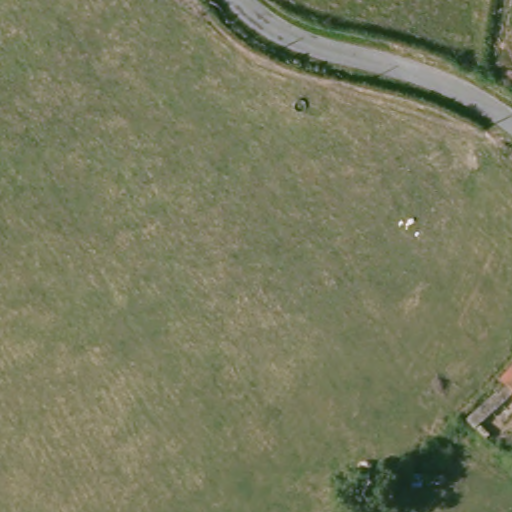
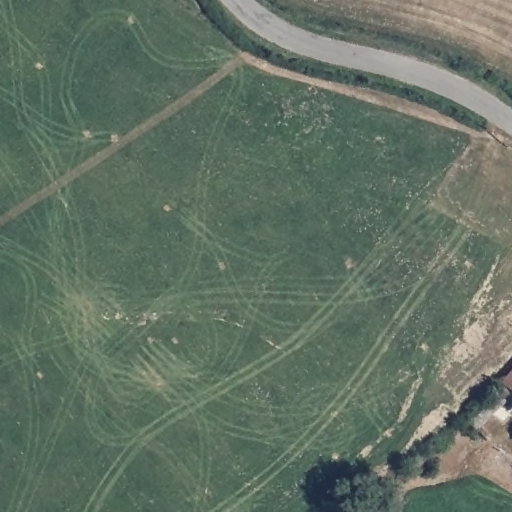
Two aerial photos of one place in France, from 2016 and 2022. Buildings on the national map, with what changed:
unchanged [(512,364),(512,385),(501,377),(512,364)]

